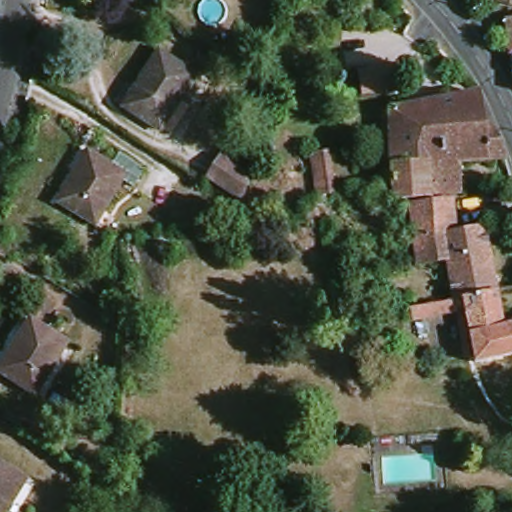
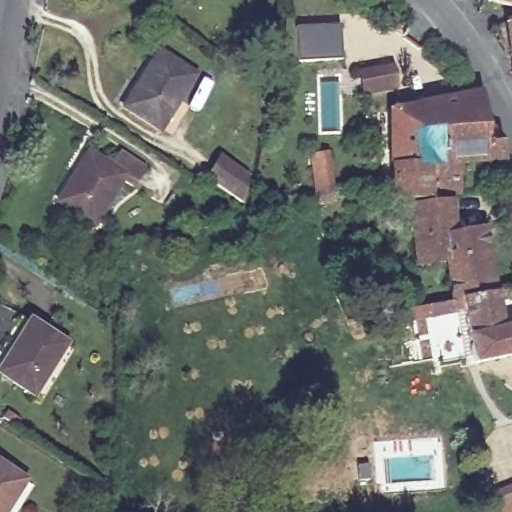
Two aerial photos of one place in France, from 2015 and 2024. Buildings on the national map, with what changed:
unchanged [(495,2),(486,1),(487,0),(512,0),(512,6),(495,2)]
new [(340,24),(342,59),(296,62),(295,26),(340,24)]
unchanged [(511,80),(511,75),(508,56),(503,27),(512,26),(512,81),(511,80)]
unchanged [(136,86),(157,52),(194,76),(159,131),(126,110),(122,107),(136,86)]
new [(387,66),(390,87),(358,92),(355,72),(387,66)]
unchanged [(394,206),(391,170),(389,117),(420,111),(425,110),(478,99),(485,132),(447,140),(448,161),(427,162),(430,201),(430,203),(409,205),(394,206)]
unchanged [(505,165),(460,167),(461,197),(430,201),(427,162),(448,161),(447,140),(485,132),(492,132),(505,165)]
unchanged [(120,156),(146,172),(135,191),(123,183),(99,229),(62,207),(75,187),(91,157),(94,159),(112,170),(120,156)]
unchanged [(247,176),(241,202),(206,178),(220,157),(247,176)]
unchanged [(333,197),(316,201),(310,160),(327,157),(333,197)]
unchanged [(450,205),(455,237),(441,240),(413,242),(410,209),(450,205)]
unchanged [(455,237),(483,232),(496,297),(452,305),(446,266),(416,271),(414,249),(413,242),(441,240),(455,237)]
unchanged [(512,331),(512,360),(474,368),(463,313),(455,315),(455,318),(411,326),(409,314),(453,306),(452,305),(496,297),(503,333),(512,331)]
unchanged [(29,321),(65,343),(34,395),(0,374),(0,368),(10,352),(29,321)]
unchanged [(371,377),(371,379),(361,380),(360,371),(368,371),(370,370),(371,377)]
unchanged [(5,512),(0,512),(0,466),(25,481),(5,512)]

